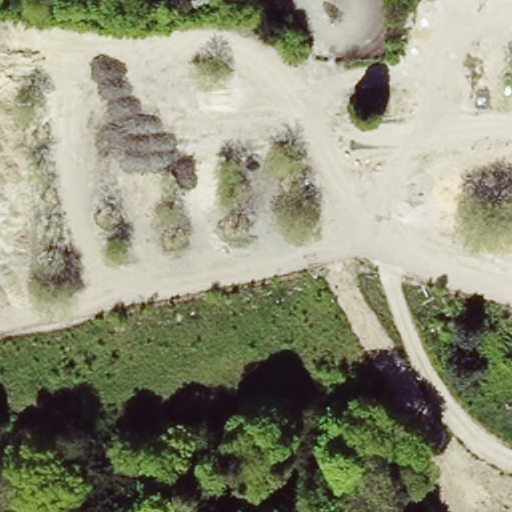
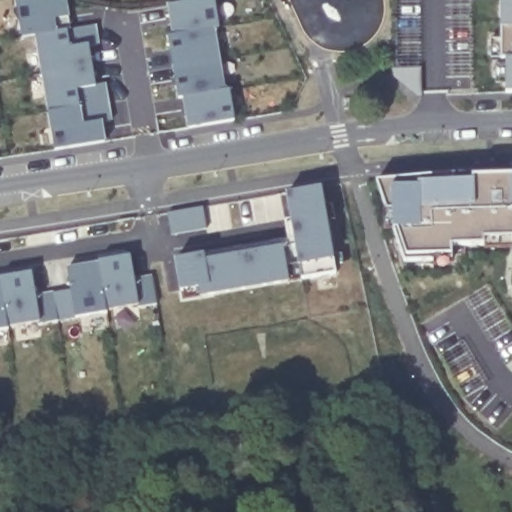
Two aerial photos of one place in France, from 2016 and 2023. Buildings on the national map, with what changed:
new [(35,36),(22,38),(16,0),(60,0),(65,1),(67,18),(70,29),(95,25),(97,45),(88,45),(95,84),(105,83),(111,121),(101,121),(105,142),(55,150),(47,111),(35,36)]
new [(214,0),(219,29),(212,30),(223,90),(230,88),(235,121),(187,127),(183,99),(177,100),(167,36),(173,35),(167,4),(192,0),(214,0)]
new [(505,91),(505,60),(500,61),(500,0),(512,0),(512,91),(505,91)]
new [(510,244),(510,239),(482,241),(481,245),(452,247),(452,255),(452,261),(403,263),(375,181),(472,175),(512,174),(512,244),(510,244)]
new [(205,255),(281,242),(280,239),(287,238),(284,219),(290,218),(285,194),(322,188),(332,261),(337,274),(300,279),(288,281),(290,283),(198,297),(185,299),(183,289),(179,290),(175,259),(205,255)]
new [(121,307),(76,318),(40,322),(0,330),(0,278),(32,273),(35,294),(70,288),(65,267),(131,255),(135,278),(150,275),(156,304),(140,307),(121,307)]

